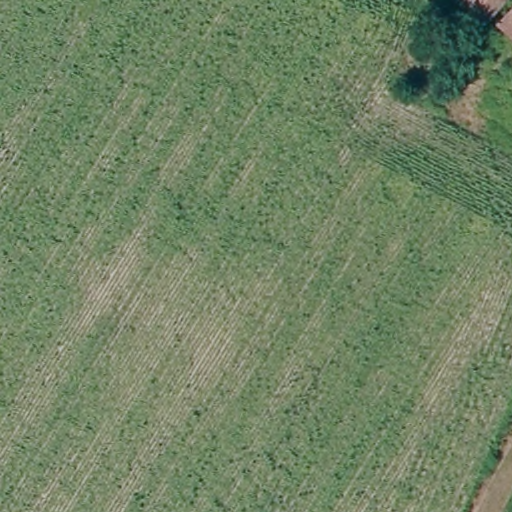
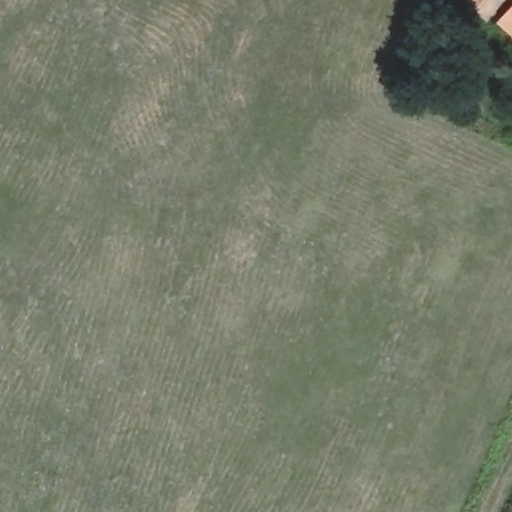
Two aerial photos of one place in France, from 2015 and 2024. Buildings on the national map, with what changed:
unchanged [(458,0),(484,0),(474,12),(458,0)]
unchanged [(489,13),(500,0),(512,0),(512,31),(502,23),(489,13)]

